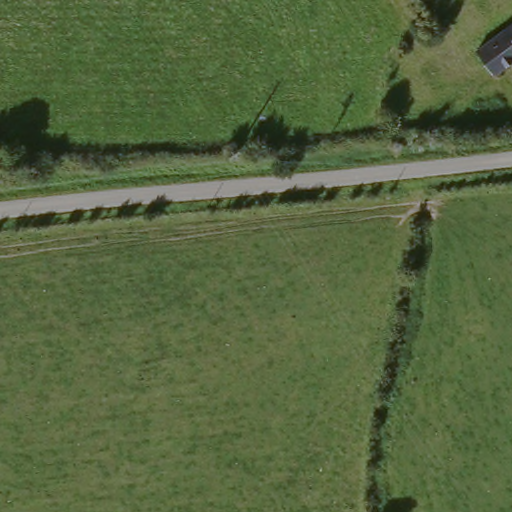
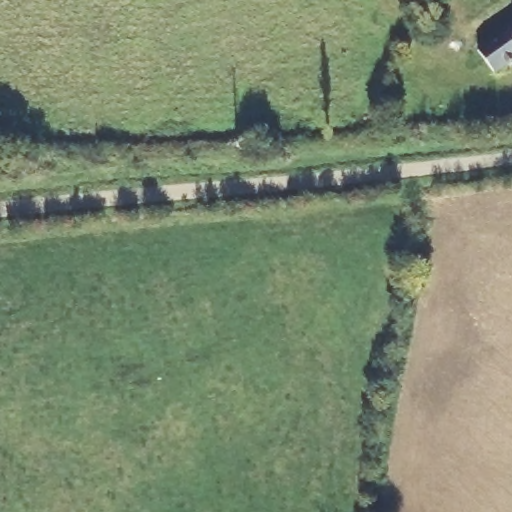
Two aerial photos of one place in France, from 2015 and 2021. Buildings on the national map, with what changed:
unchanged [(470,61),(512,31),(512,67),(488,84),(470,61)]

